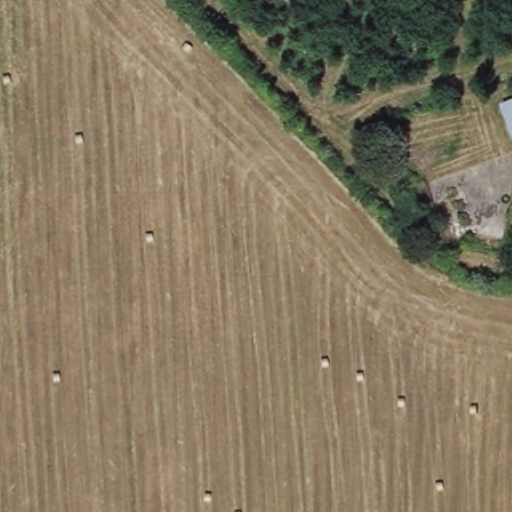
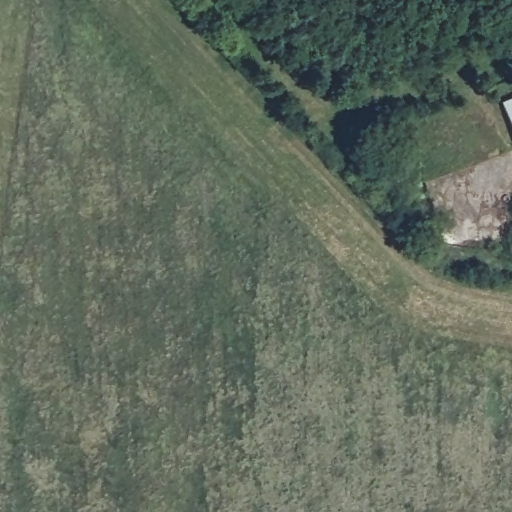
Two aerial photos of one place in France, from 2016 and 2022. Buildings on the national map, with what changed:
unchanged [(512,98),(512,128),(501,102),(512,98)]

